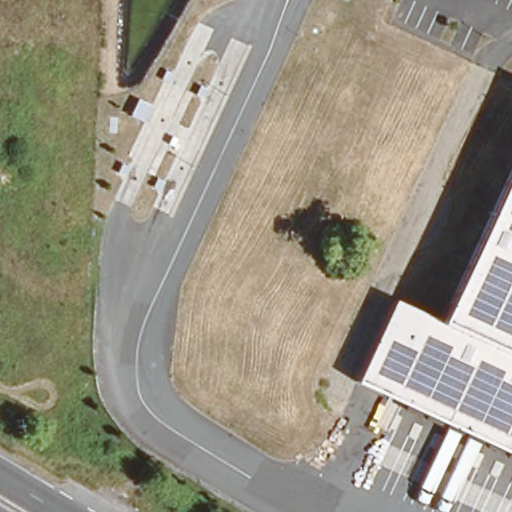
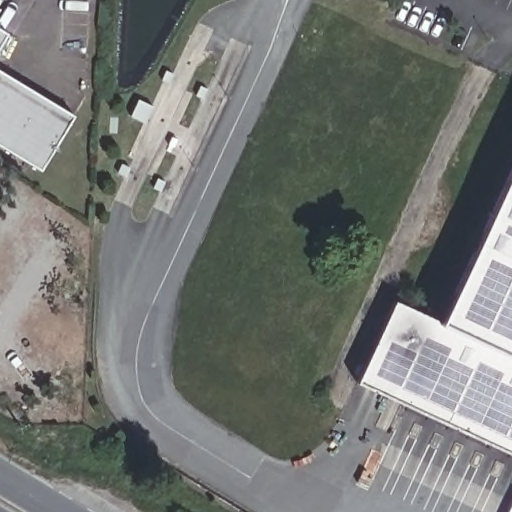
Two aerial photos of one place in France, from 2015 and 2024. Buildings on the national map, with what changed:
new [(0,42),(0,28),(6,31),(0,42)]
new [(73,115),(39,170),(0,146),(0,71),(73,115)]
unchanged [(396,302),(440,322),(512,168),(512,451),(360,381),(396,302)]

